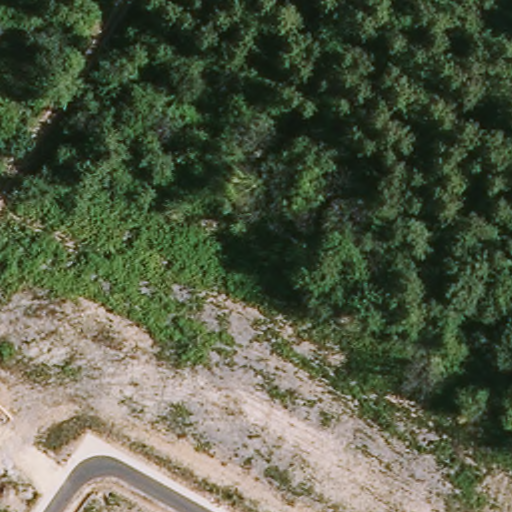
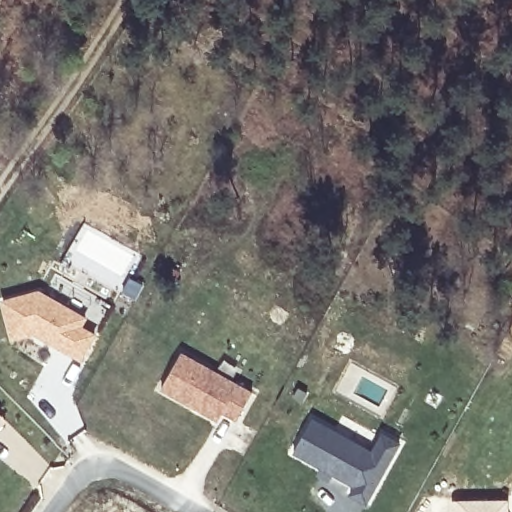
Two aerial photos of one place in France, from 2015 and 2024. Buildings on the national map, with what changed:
new [(12,339),(2,303),(38,293),(97,327),(79,360),(40,338),(32,333),(12,339)]
new [(177,353),(248,392),(232,419),(218,412),(213,419),(157,388),(177,353)]
new [(400,444),(367,505),(350,496),(355,487),(294,454),(312,420),(372,453),(383,434),(400,444)]
new [(507,500),(508,512),(453,512),(453,500),(507,500)]

